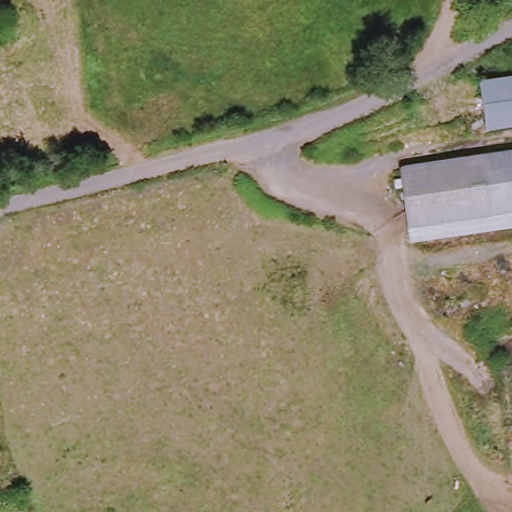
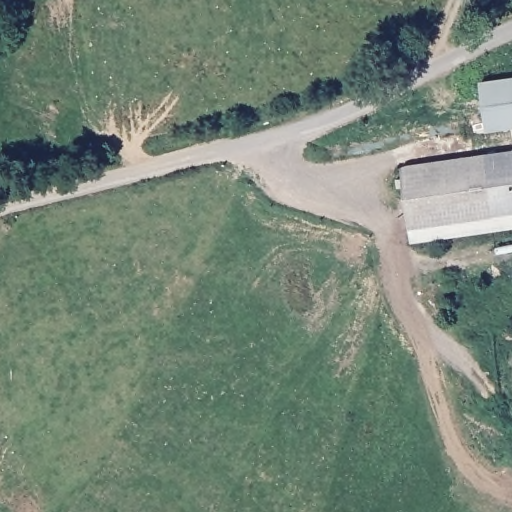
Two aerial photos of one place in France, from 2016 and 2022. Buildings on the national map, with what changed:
unchanged [(487,87),(512,83),(512,134),(494,137),(487,87)]
unchanged [(407,168),(512,154),(512,214),(415,228),(407,168)]

